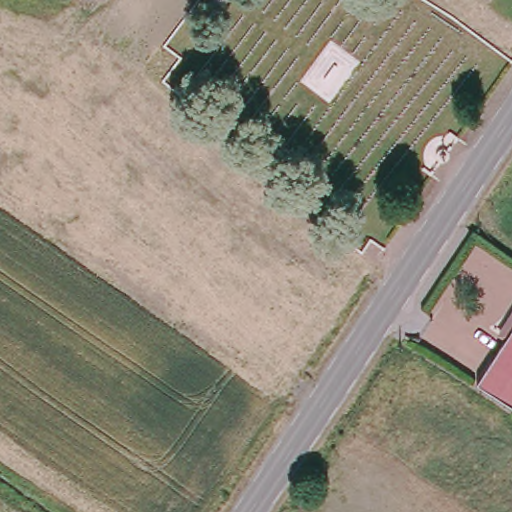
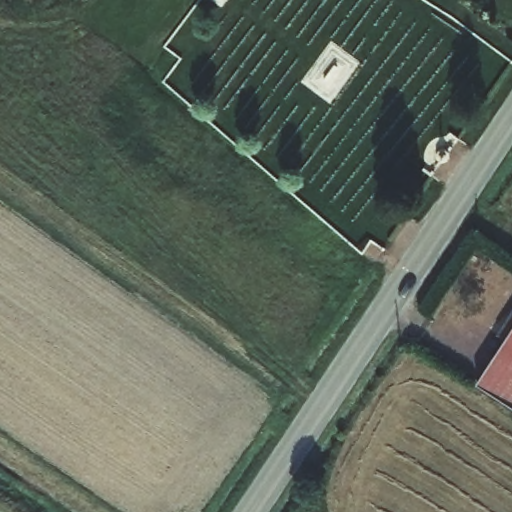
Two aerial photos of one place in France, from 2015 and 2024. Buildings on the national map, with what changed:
unchanged [(512,338),(512,407),(480,384),(512,338)]

